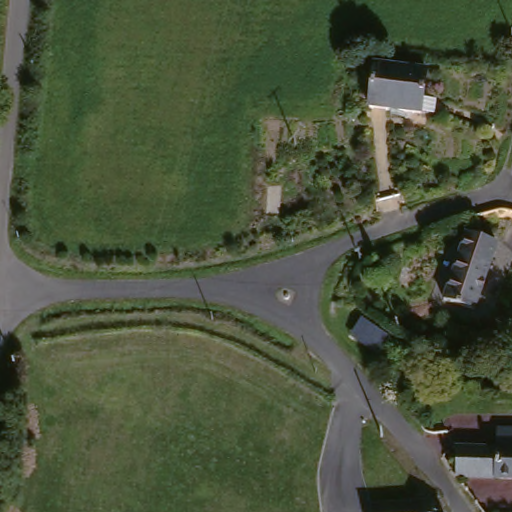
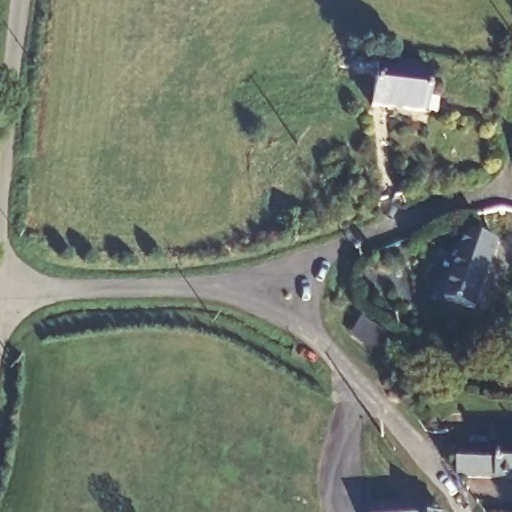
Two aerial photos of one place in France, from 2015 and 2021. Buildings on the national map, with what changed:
unchanged [(420,98),(432,100),(430,114),(418,113),(417,115),(365,108),(371,64),(423,70),(420,98)]
unchanged [(497,246),(475,313),(441,302),(461,234),(497,246)]
unchanged [(362,317),(392,338),(381,354),(351,334),(362,317)]
unchanged [(454,481),(451,452),(493,453),(493,434),(512,434),(512,484),(454,481)]
unchanged [(430,506),(431,512),(366,512),(366,510),(430,506)]

